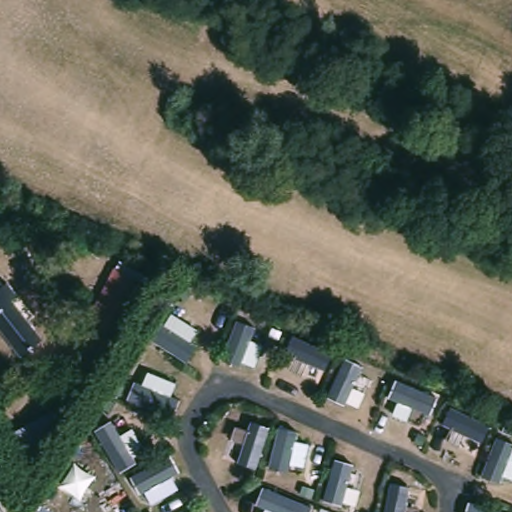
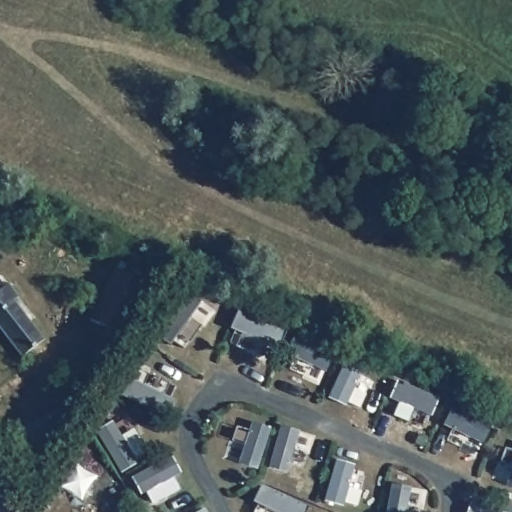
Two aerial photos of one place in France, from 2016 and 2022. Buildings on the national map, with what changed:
unchanged [(90,320),(113,270),(143,284),(120,334),(90,320)]
unchanged [(0,333),(0,290),(38,344),(18,358),(0,333)]

